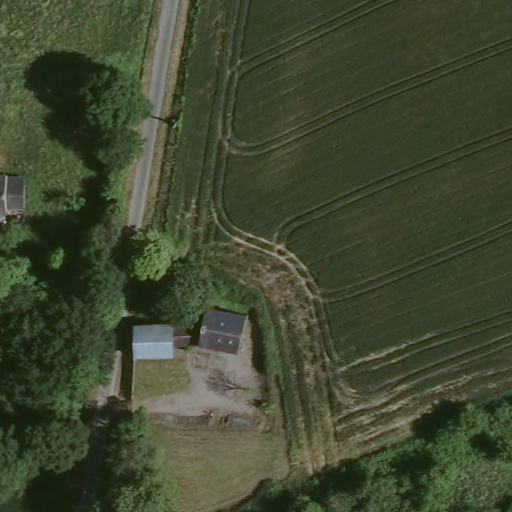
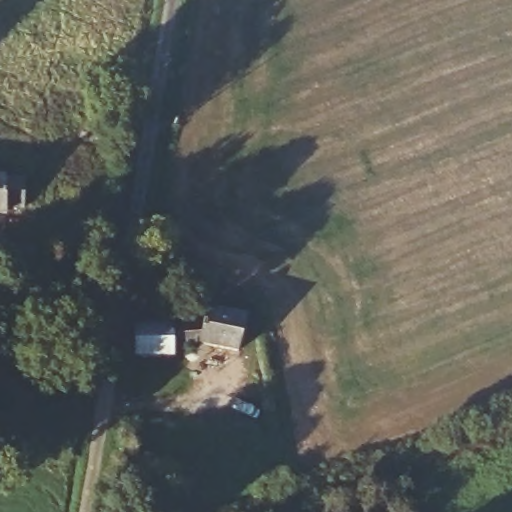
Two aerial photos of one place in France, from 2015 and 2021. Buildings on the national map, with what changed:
unchanged [(2,176),(21,177),(20,205),(4,206),(3,211),(0,211),(0,156),(2,157),(2,176)]
unchanged [(199,328),(203,313),(240,323),(233,357),(194,348),(181,348),(170,351),(171,360),(135,358),(132,330),(199,328)]

